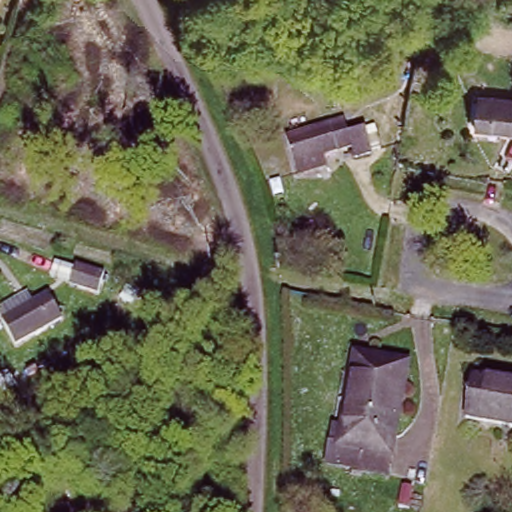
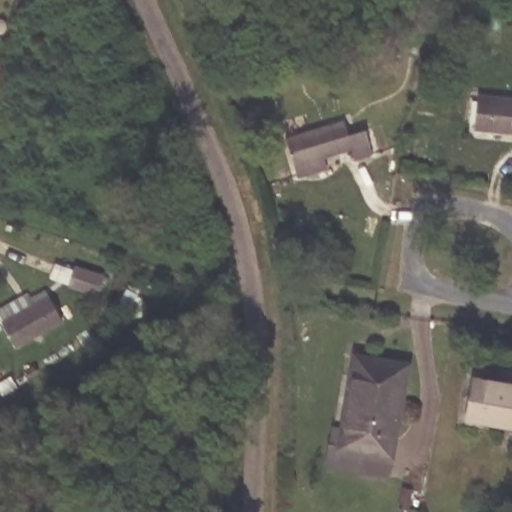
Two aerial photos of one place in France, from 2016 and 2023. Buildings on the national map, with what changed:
unchanged [(480,98),(512,101),(512,129),(477,126),(480,98)]
unchanged [(292,166),(285,142),(344,126),(347,137),(364,133),(371,156),(353,161),(350,149),(322,157),(325,169),(295,178),(292,166)]
unchanged [(77,264),(106,273),(100,292),(72,283),(77,264)]
unchanged [(51,294),(65,318),(18,345),(5,321),(51,294)]
unchanged [(394,471),(344,462),(364,351),(413,360),(394,471)]
unchanged [(470,380),(512,387),(512,428),(463,420),(470,380)]
unchanged [(417,483),(407,481),(409,462),(419,463),(417,483)]

